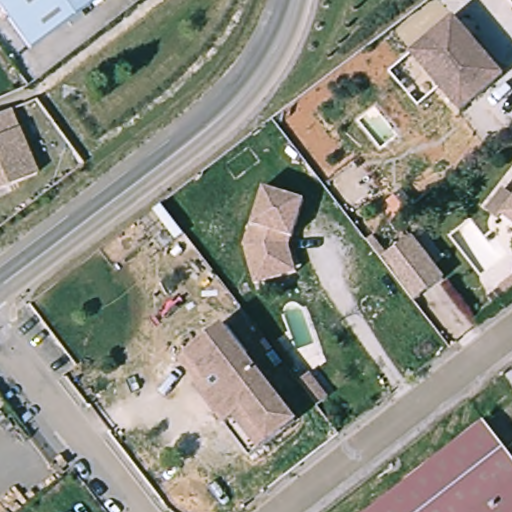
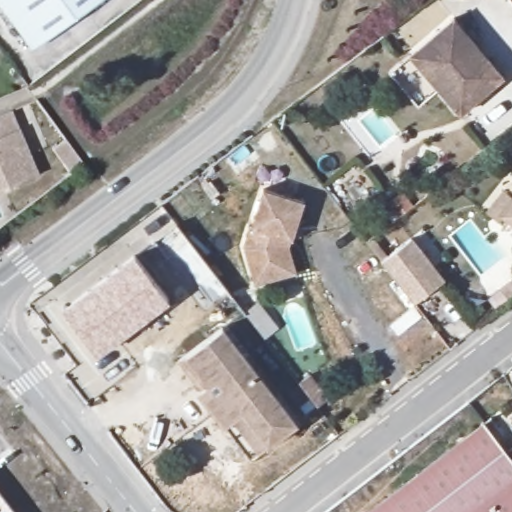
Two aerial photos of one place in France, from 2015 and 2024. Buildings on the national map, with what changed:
unchanged [(0,5),(0,0),(89,0),(30,44),(0,5)]
unchanged [(477,45),(503,76),(494,84),(460,113),(410,55),(453,17),(477,45)]
new [(0,133),(0,115),(7,112),(13,127),(0,133)]
unchanged [(13,127),(32,173),(0,186),(0,133),(13,127)]
unchanged [(301,203),(288,242),(287,242),(285,247),(293,276),(253,286),(242,247),(248,229),(249,229),(262,190),(301,203)]
unchanged [(496,221),(485,213),(499,192),(510,200),(512,198),(512,226),(499,217),(496,221)]
unchanged [(412,238),(443,281),(413,302),(382,260),(412,238)]
new [(170,303),(97,355),(61,307),(134,252),(170,303)]
unchanged [(290,423),(244,459),(194,388),(203,379),(184,354),(220,330),(290,423)]
unchanged [(310,400),(301,386),(311,378),(328,403),(317,410),(310,400)]
unchanged [(512,458),(512,512),(363,512),(481,419),(502,445),(512,458)]
unchanged [(512,437),(512,458),(502,445),(512,437)]
new [(10,512),(0,512),(0,500),(10,512)]

